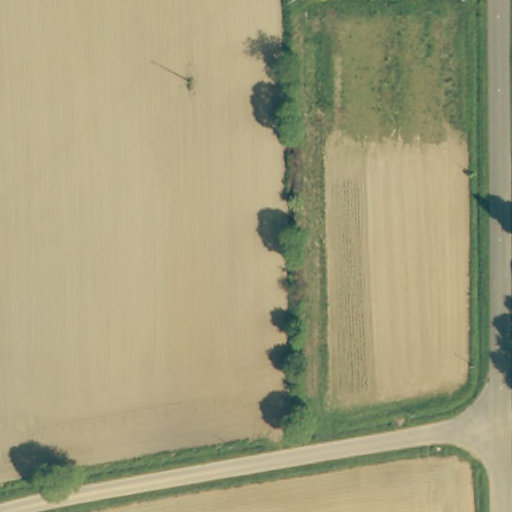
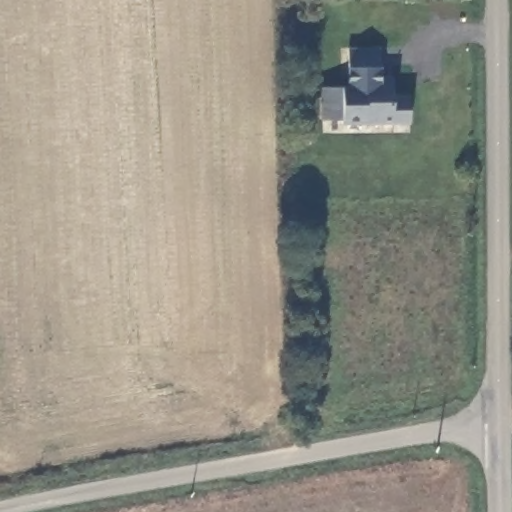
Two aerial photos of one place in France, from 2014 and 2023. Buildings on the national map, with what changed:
new [(382,77),(395,76),(394,94),(412,94),(411,123),(343,124),(342,119),(323,119),(322,86),(349,86),(350,47),(381,47),(382,77)]

